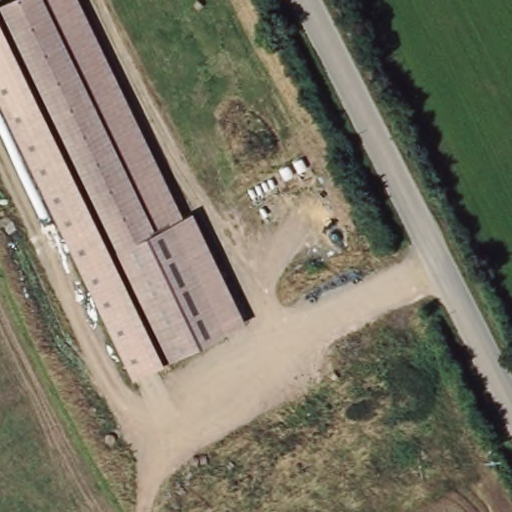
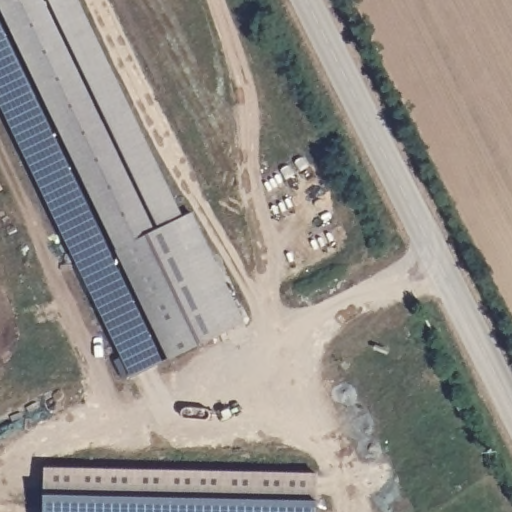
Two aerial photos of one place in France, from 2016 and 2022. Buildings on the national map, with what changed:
unchanged [(191,209),(245,321),(131,378),(0,98),(0,0),(80,0),(181,214),(191,209)]
new [(43,482),(313,483),(313,512),(43,512),(43,482)]

